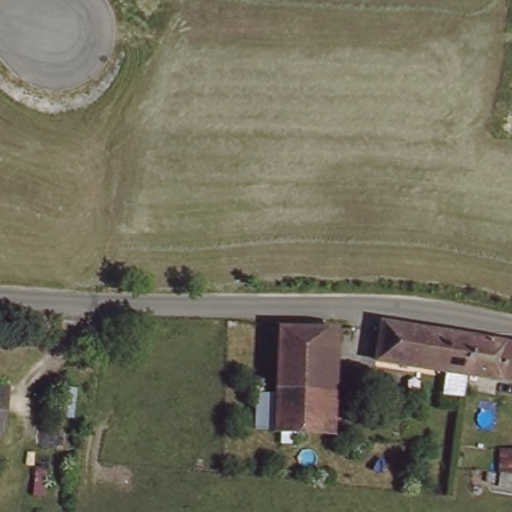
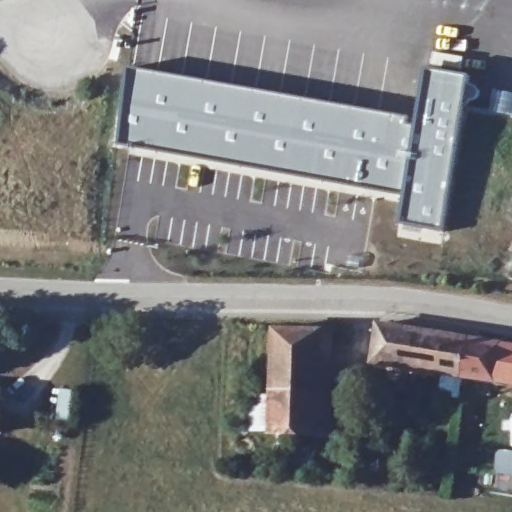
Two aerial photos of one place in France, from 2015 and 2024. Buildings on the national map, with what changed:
new [(125,66),(418,118),(403,196),(325,184),(224,166),(117,145),(125,66)]
new [(403,196),(418,118),(424,93),(427,93),(432,70),(470,76),(442,229),(399,222),(403,196)]
unchanged [(451,391),(439,389),(442,368),(372,357),(379,319),(467,334),(464,370),(462,370),(461,382),(459,382),(457,392),(451,391)]
unchanged [(280,439),(280,428),(272,428),(252,428),(254,396),(273,397),(275,324),(322,325),(319,429),(289,429),(289,439),(280,439)]
unchanged [(512,378),(497,375),(495,375),(464,370),(467,334),(512,342),(512,378)]
unchanged [(497,474),(498,452),(512,453),(512,490),(495,488),(497,474)]

